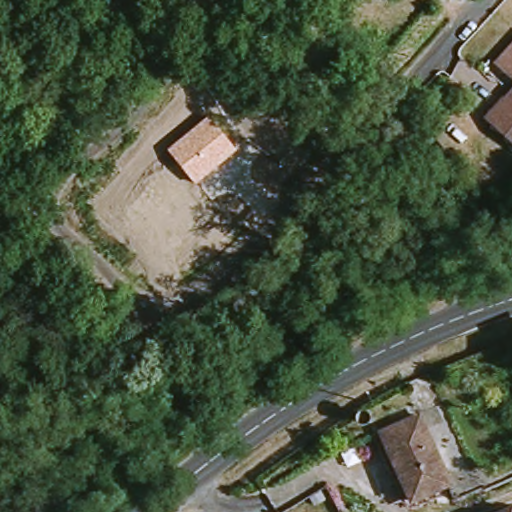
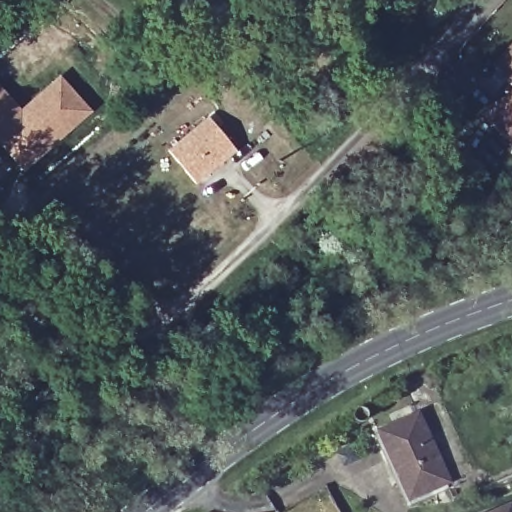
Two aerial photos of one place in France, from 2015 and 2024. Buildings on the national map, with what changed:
unchanged [(512,51),(512,77),(500,66),(512,51)]
new [(24,168),(0,141),(0,92),(20,115),(59,81),(87,111),(24,168)]
unchanged [(512,95),(512,142),(490,122),(512,95)]
unchanged [(167,151),(208,117),(235,151),(196,185),(167,151)]
unchanged [(417,497),(386,429),(423,413),(455,480),(417,497)]

